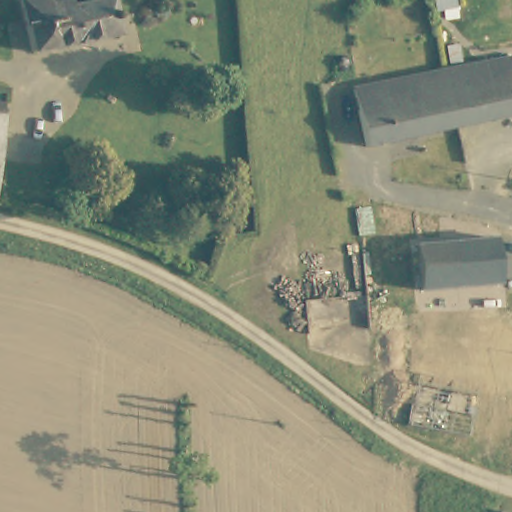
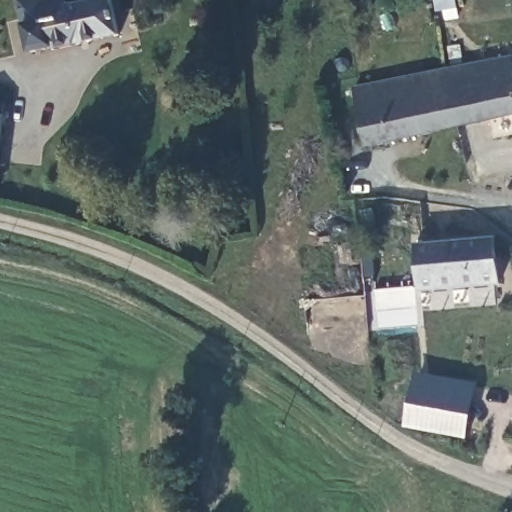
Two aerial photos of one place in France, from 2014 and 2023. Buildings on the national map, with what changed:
unchanged [(30,0),(76,0),(76,5),(107,0),(116,0),(123,37),(40,52),(28,0),(30,0)]
unchanged [(512,57),(512,118),(458,128),(448,69),(512,57)]
unchanged [(363,67),(363,73),(361,78),(358,82),(353,84),(349,81),(345,78),(344,73),(345,68),(347,63),(357,62),(363,67)]
unchanged [(368,145),(359,87),(400,79),(448,69),(458,128),(368,145)]
unchanged [(0,108),(16,109),(1,202),(0,202),(0,108)]
unchanged [(501,282),(498,283),(421,287),(418,242),(477,238),(498,237),(501,282)]
new [(407,430),(416,373),(479,383),(468,438),(407,430)]

